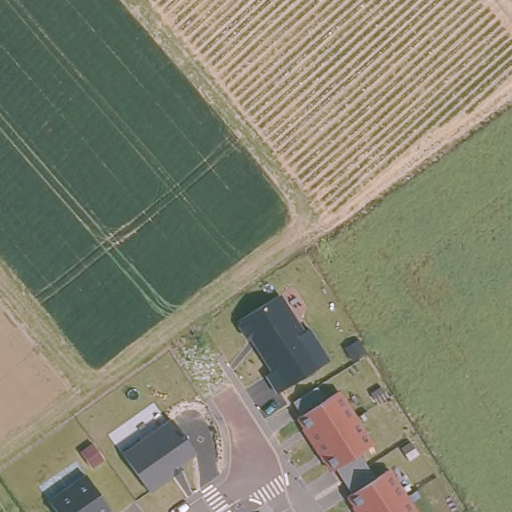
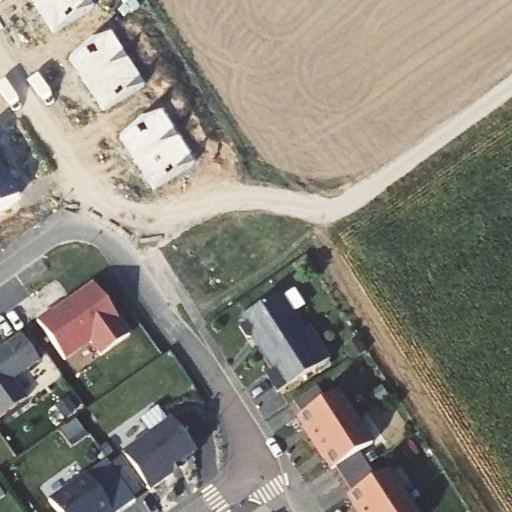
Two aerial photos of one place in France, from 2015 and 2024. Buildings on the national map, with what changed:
new [(51,35),(28,0),(87,0),(93,9),(51,35)]
new [(109,35),(143,87),(104,112),(70,59),(109,35)]
new [(193,165),(153,190),(120,137),(160,114),(193,165)]
new [(20,195),(0,208),(0,165),(20,195)]
new [(36,322),(50,312),(51,314),(93,285),(130,337),(100,357),(90,343),(64,362),(36,322)]
unchanged [(303,331),(308,328),(328,359),(276,391),(263,371),(269,367),(249,336),(246,338),(237,324),(278,295),(303,331)]
new [(20,335),(38,361),(12,380),(25,400),(0,418),(0,350),(20,335)]
unchanged [(360,451),(377,477),(390,470),(417,512),(357,512),(347,496),(351,493),(333,466),(327,470),(297,418),(339,392),(372,443),(360,451)]
unchanged [(195,454),(180,464),(182,468),(148,490),(122,450),(170,417),(195,454)]
new [(126,459),(146,487),(132,497),(112,468),(126,459)]
unchanged [(110,509),(106,512),(56,512),(48,501),(86,475),(110,509)]

